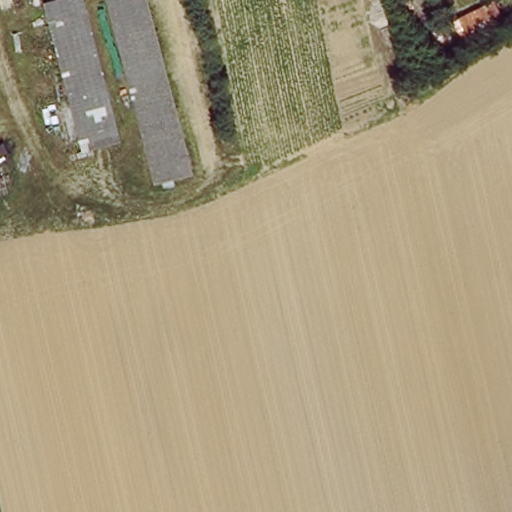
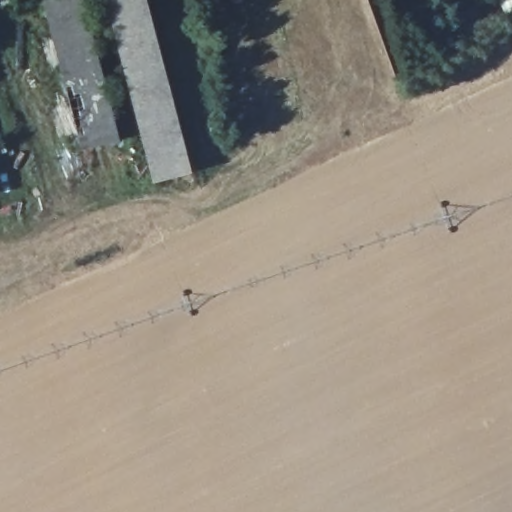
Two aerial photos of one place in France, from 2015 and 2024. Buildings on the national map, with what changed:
unchanged [(46,2),(51,0),(81,0),(117,140),(83,148),(46,2)]
unchanged [(108,0),(140,0),(147,26),(184,177),(155,184),(121,52),(108,0)]

